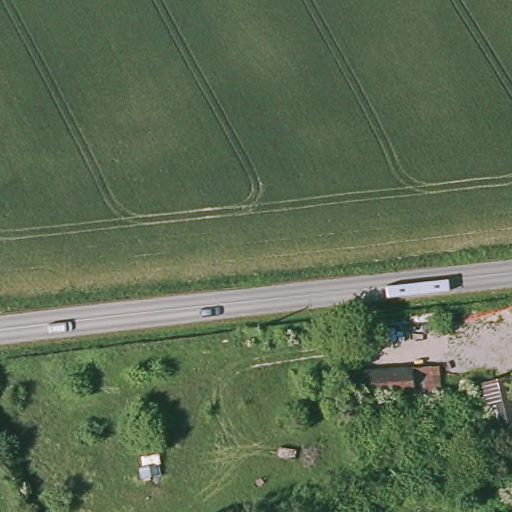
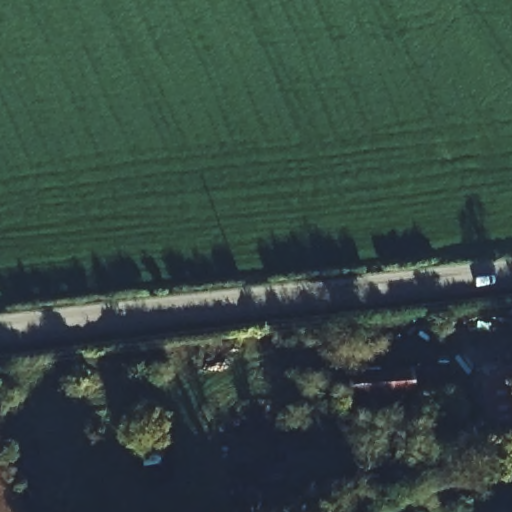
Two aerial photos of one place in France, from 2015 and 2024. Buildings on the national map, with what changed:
unchanged [(405,392),(355,396),(352,371),(418,364),(429,363),(432,393),(420,394),(405,396),(405,392)]
unchanged [(507,394),(510,419),(511,426),(483,429),(482,427),(480,397),(507,394)]

